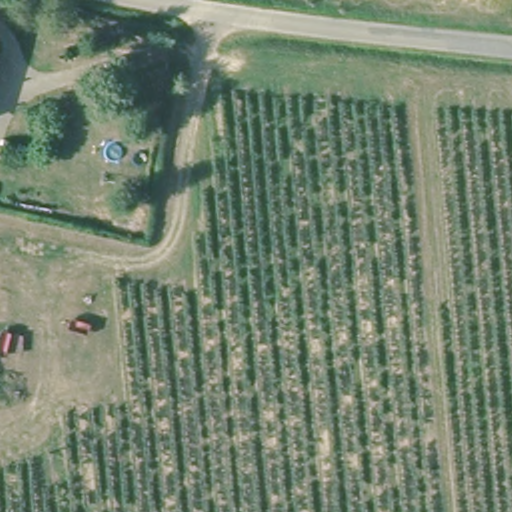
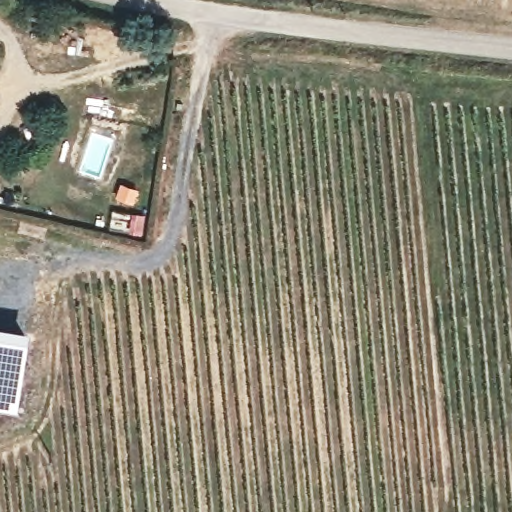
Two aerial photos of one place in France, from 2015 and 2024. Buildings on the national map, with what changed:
new [(29,328),(27,338),(17,410),(0,407),(0,324),(29,328)]

